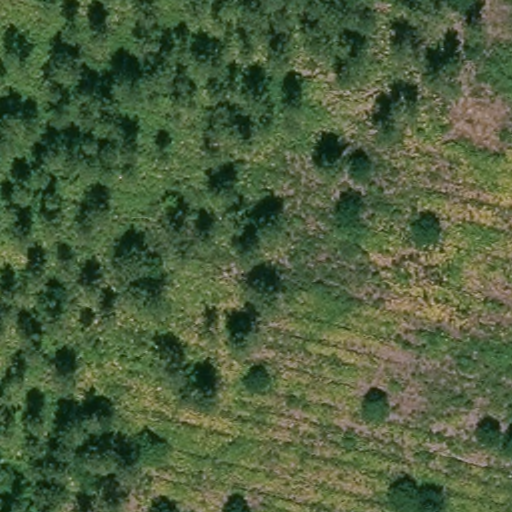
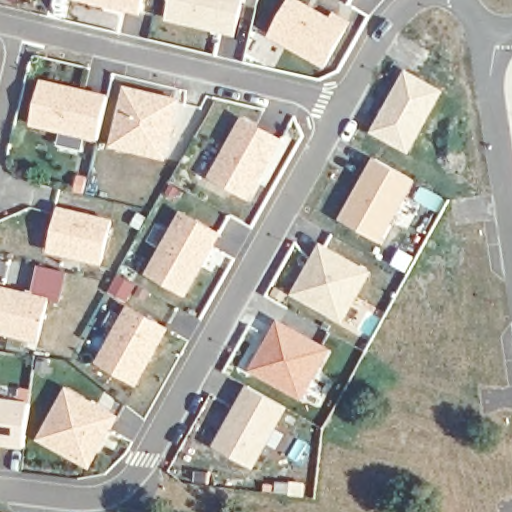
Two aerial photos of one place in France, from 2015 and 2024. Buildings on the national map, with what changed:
new [(80,0),(144,0),(141,12),(80,0)]
new [(172,0),(244,0),(236,37),(166,22),(172,0)]
new [(289,0),(299,0),(330,17),(334,12),(351,22),(325,68),(268,37),(289,0)]
new [(405,69),(444,91),(408,155),(368,132),(405,69)]
new [(41,80),(109,95),(99,142),(84,138),(81,150),(58,145),(60,132),(30,127),(41,80)]
new [(110,147),(126,86),(180,99),(166,161),(110,147)]
new [(209,177),(242,116),(284,140),(250,201),(209,177)]
new [(372,157),(415,180),(380,245),(336,218),(372,157)]
new [(47,254),(58,207),(113,220),(103,265),(47,254)]
new [(146,275),(181,212),(221,233),(187,297),(146,275)]
new [(319,242),(372,271),(340,325),(288,294),(319,242)]
new [(0,286),(32,293),(39,266),(65,273),(60,301),(50,300),(40,342),(0,334),(0,286)]
new [(97,362),(128,305),(169,328),(138,387),(97,362)]
new [(280,316),(332,349),(301,400),(248,372),(280,316)]
new [(244,383),(288,407),(276,433),(278,435),(276,438),(278,439),(274,447),(269,445),(252,469),(211,445),(244,383)]
new [(90,468),(37,440),(67,387),(119,416),(90,468)]
new [(0,397),(30,401),(25,447),(0,445),(0,397)]
new [(263,481),(306,482),(304,497),(262,491),(263,481)]

